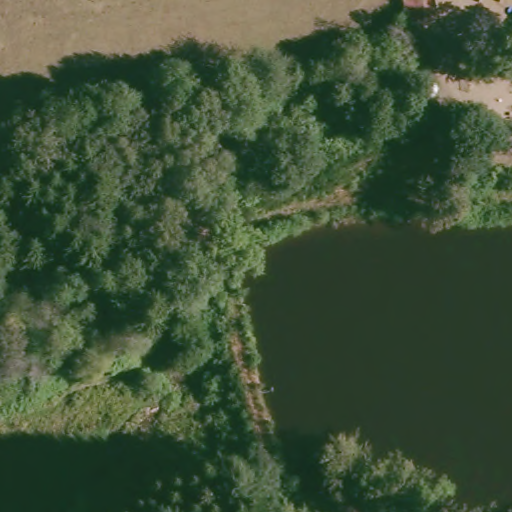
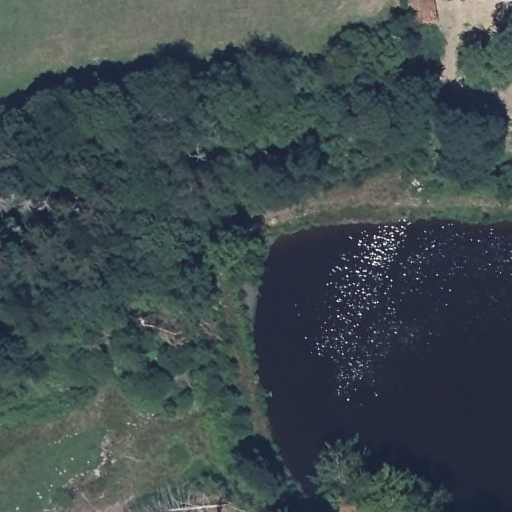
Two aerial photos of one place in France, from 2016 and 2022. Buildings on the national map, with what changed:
unchanged [(404,0),(437,0),(439,25),(406,27),(404,0)]
unchanged [(475,0),(512,0),(512,6),(475,5),(475,0)]

